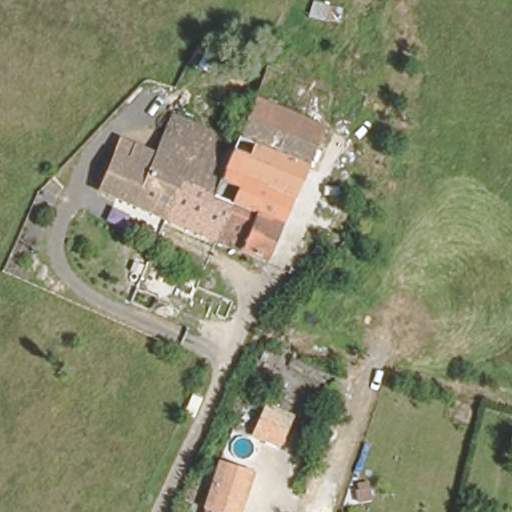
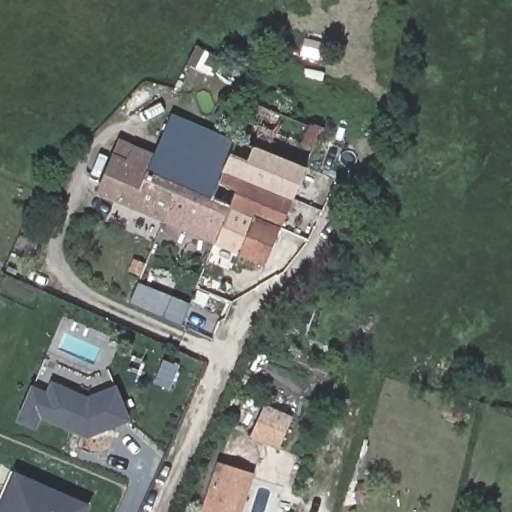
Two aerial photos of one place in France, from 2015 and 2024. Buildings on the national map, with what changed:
unchanged [(232,144),(254,99),(318,128),(321,129),(277,227),(279,228),(262,264),(238,253),(237,256),(191,234),(232,144)]
unchanged [(94,190),(112,151),(124,157),(130,143),(152,153),(170,115),(232,144),(191,234),(94,190)]
new [(35,390),(49,397),(54,386),(89,401),(117,390),(130,422),(89,439),(42,418),(37,430),(21,423),(35,390)]
unchanged [(263,402),(292,415),(276,449),(247,436),(263,402)]
unchanged [(244,512),(206,512),(202,511),(220,462),(256,473),(244,512)]
new [(87,512),(0,512),(0,505),(14,471),(91,503),(87,512)]

